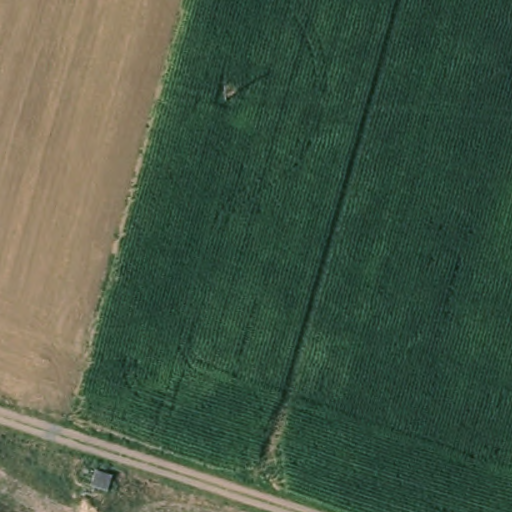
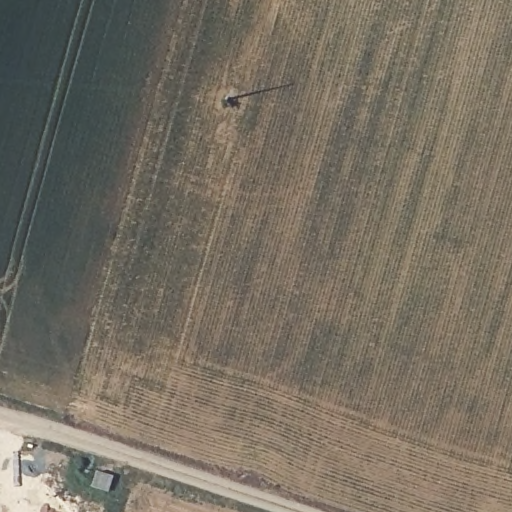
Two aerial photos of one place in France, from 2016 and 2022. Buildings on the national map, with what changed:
unchanged [(95,478),(110,483),(106,498),(90,493),(95,478)]

